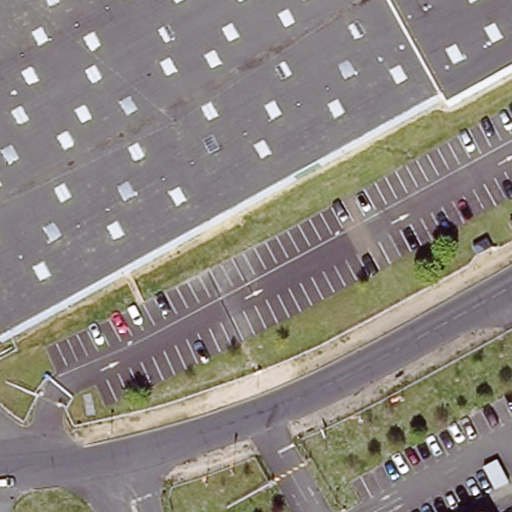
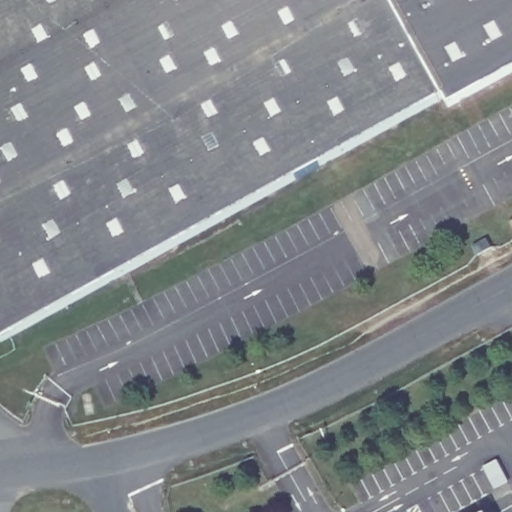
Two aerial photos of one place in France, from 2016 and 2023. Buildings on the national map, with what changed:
unchanged [(309,167),(272,187),(0,337),(0,0),(216,0),(284,122),(309,167)]
unchanged [(404,114),(309,167),(284,122),(216,0),(358,0),(417,107),(404,114)]
unchanged [(358,0),(512,0),(512,66),(449,102),(443,92),(417,107),(358,0)]
unchanged [(487,239),(491,247),(477,256),(472,247),(487,239)]

